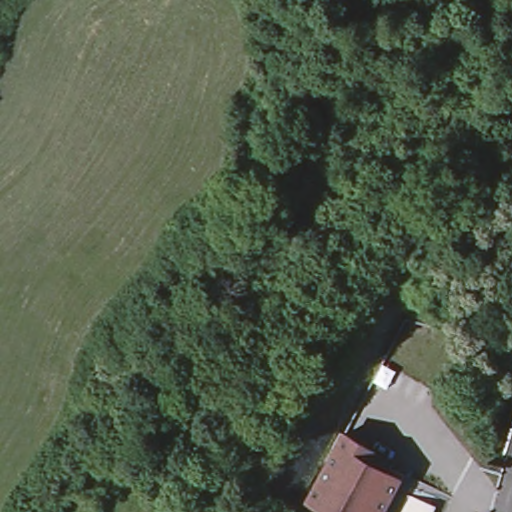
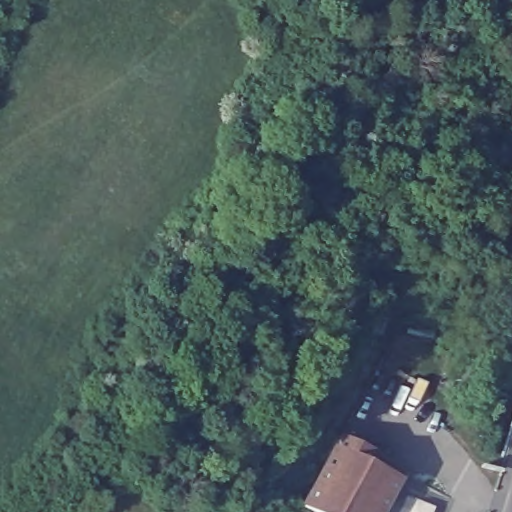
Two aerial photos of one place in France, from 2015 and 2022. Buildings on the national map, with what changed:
unchanged [(337,439),(342,443),(338,452),(332,449),(337,439)]
unchanged [(322,510),(312,504),(320,488),(331,493),(342,471),(331,466),(338,452),(350,458),(381,474),(362,509),(361,512),(326,512),(322,510)]
unchanged [(430,506),(427,512),(395,512),(404,494),(430,506)]

